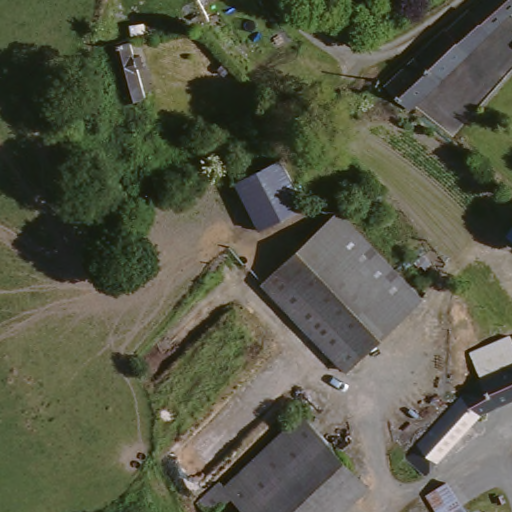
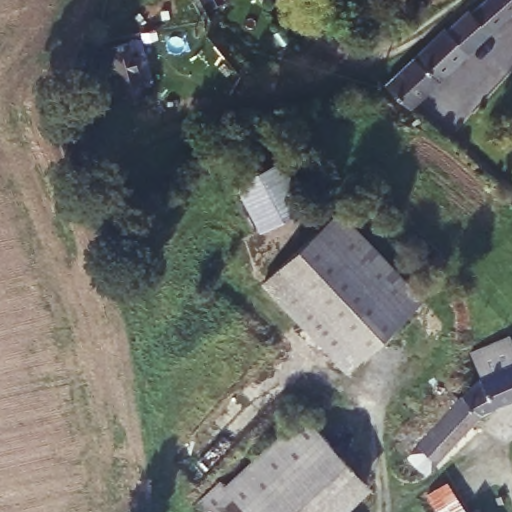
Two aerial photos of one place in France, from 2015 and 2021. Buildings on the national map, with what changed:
unchanged [(197,0),(203,0),(199,2),(197,0)]
unchanged [(341,30),(323,14),(337,0),(340,0),(358,15),(366,25),(351,37),(341,30)]
unchanged [(480,0),(512,0),(512,12),(488,35),(464,13),(480,0)]
unchanged [(488,35),(438,81),(412,59),(440,29),(442,31),(464,13),(488,35)]
unchanged [(101,55),(123,47),(139,92),(119,101),(101,55)]
unchanged [(380,99),(386,89),(412,59),(438,81),(411,111),(409,110),(401,119),(380,99)]
unchanged [(141,93),(138,74),(158,71),(161,90),(141,93)]
unchanged [(282,160),(306,212),(259,233),(243,194),(237,182),(277,165),(282,160)]
unchanged [(348,213),(418,288),(328,372),(258,296),(348,213)]
unchanged [(463,368),(502,348),(512,368),(512,372),(474,389),(463,368)]
unchanged [(512,408),(478,423),(416,487),(395,466),(396,465),(474,389),(512,372),(512,408)]
unchanged [(217,509),(278,422),(311,445),(264,512),(220,512),(217,509)]
unchanged [(350,472),(327,505),(336,512),(264,512),(311,445),(350,472)]
unchanged [(433,481),(464,512),(422,512),(412,502),(433,481)]
unchanged [(475,507),(480,512),(470,512),(475,507)]

